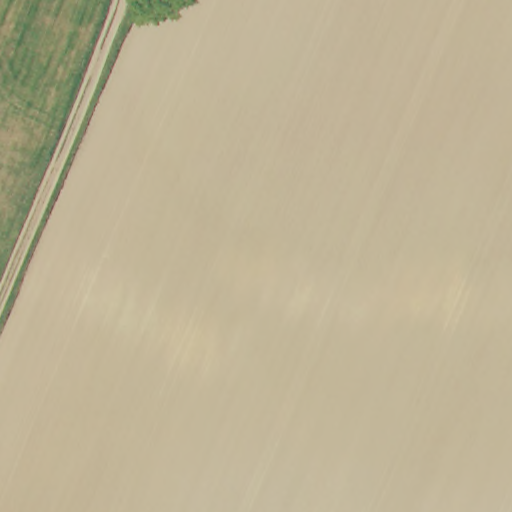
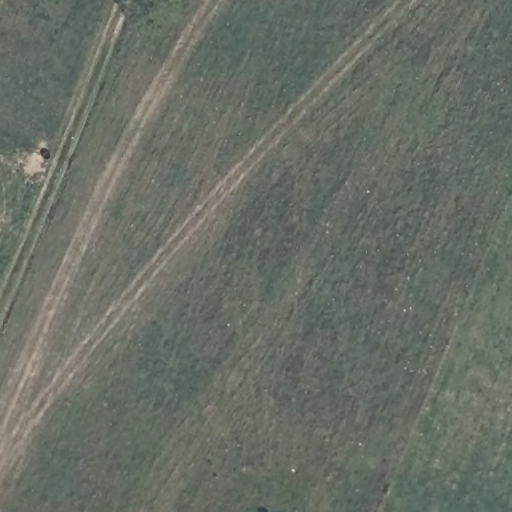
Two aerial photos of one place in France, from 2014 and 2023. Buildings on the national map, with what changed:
[]

